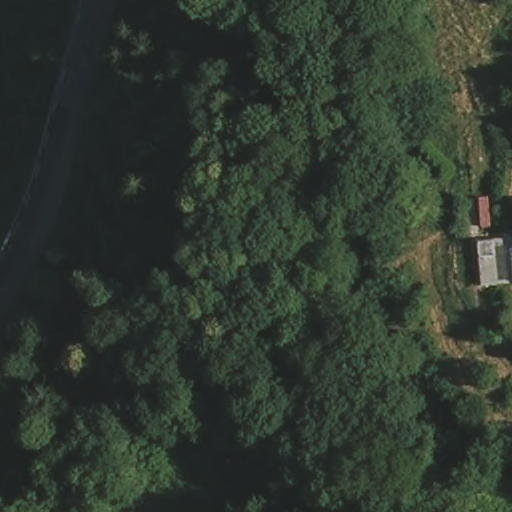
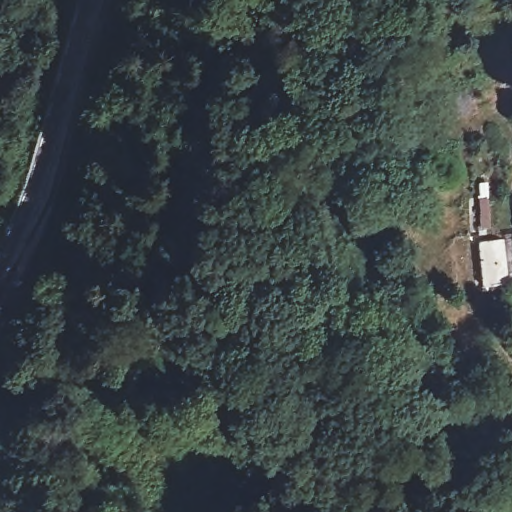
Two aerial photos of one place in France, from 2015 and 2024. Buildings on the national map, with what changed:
unchanged [(476,243),(512,240),(512,285),(480,287),(476,243)]

